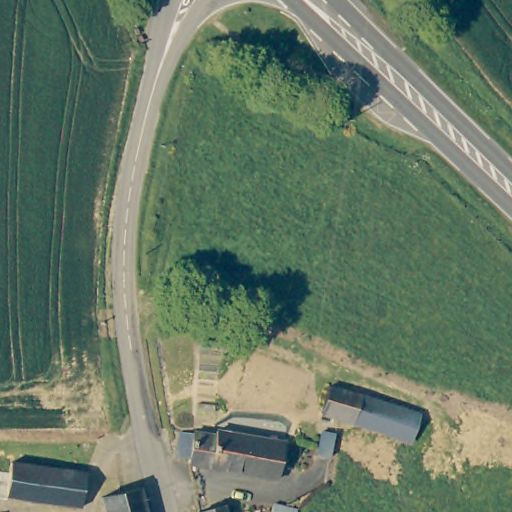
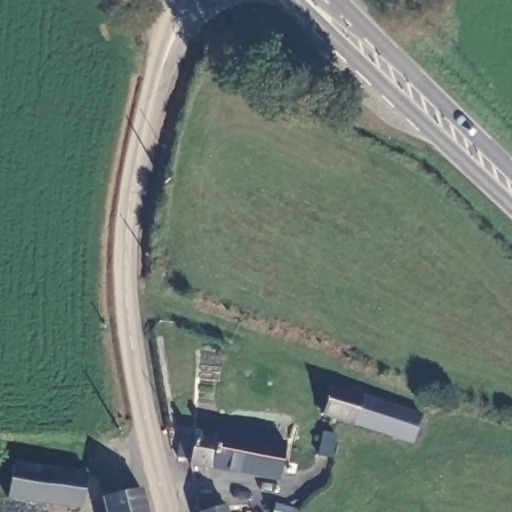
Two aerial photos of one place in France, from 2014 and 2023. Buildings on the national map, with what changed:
unchanged [(248,55),(263,62),(259,71),(244,63),(248,55)]
unchanged [(323,413),(331,387),(399,407),(420,415),(411,441),(373,429),(323,413)]
unchanged [(190,464),(190,459),(177,457),(180,436),(194,434),(194,432),(196,432),(216,432),(216,436),(209,467),(190,464)]
unchanged [(323,432),(335,435),(330,457),(318,455),(323,432)]
unchanged [(254,439),(285,442),(278,480),(209,467),(216,436),(254,439)]
unchanged [(7,462),(82,473),(76,508),(2,497),(6,472),(7,462)]
unchanged [(140,488),(147,512),(106,512),(102,497),(140,488)]
unchanged [(297,510),(297,512),(272,512),(275,503),(297,510)]
unchanged [(227,512),(203,512),(225,506),(227,512)]

